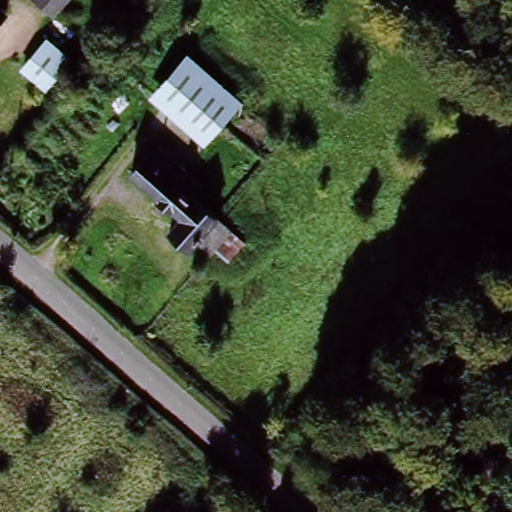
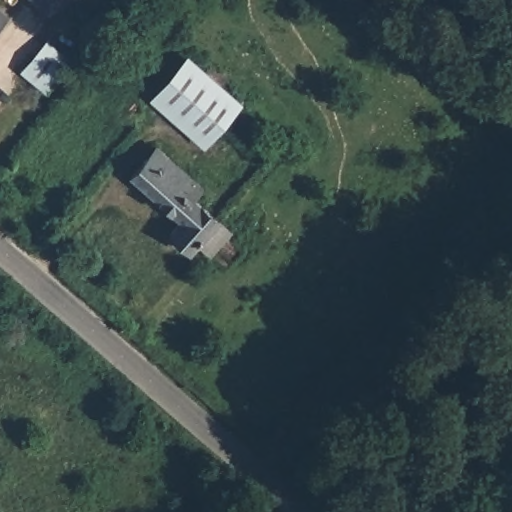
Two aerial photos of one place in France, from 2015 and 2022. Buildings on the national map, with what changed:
unchanged [(60,26),(32,0),(82,0),(60,26)]
unchanged [(0,28),(0,4),(11,16),(0,28)]
unchanged [(47,37),(79,65),(51,98),(18,71),(47,37)]
unchanged [(188,52),(249,106),(210,149),(149,98),(188,52)]
unchanged [(156,144),(208,188),(199,199),(220,216),(248,245),(229,264),(203,241),(191,252),(168,235),(178,222),(128,176),(156,144)]

